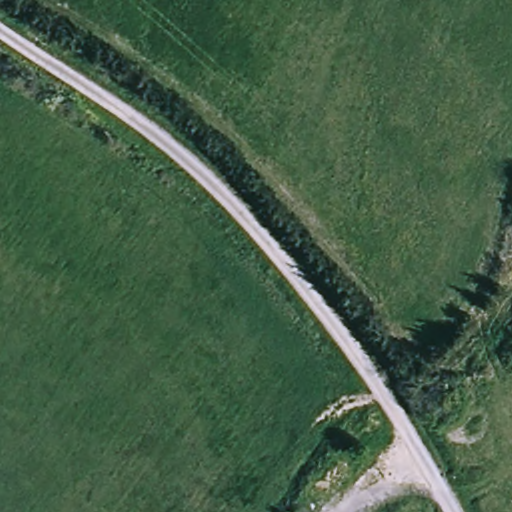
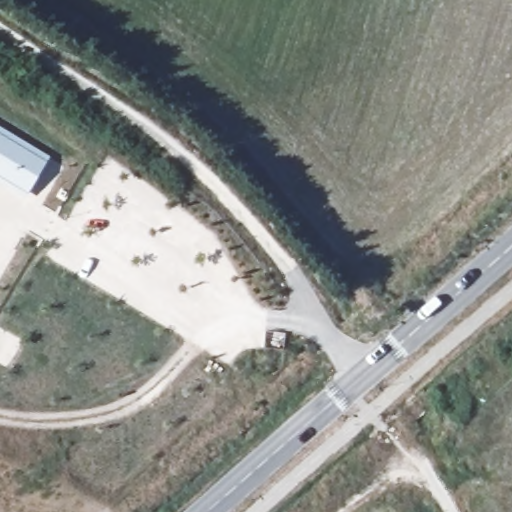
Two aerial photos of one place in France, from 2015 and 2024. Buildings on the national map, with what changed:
new [(50,159),(46,164),(27,197),(25,201),(0,186),(0,129),(50,159)]

